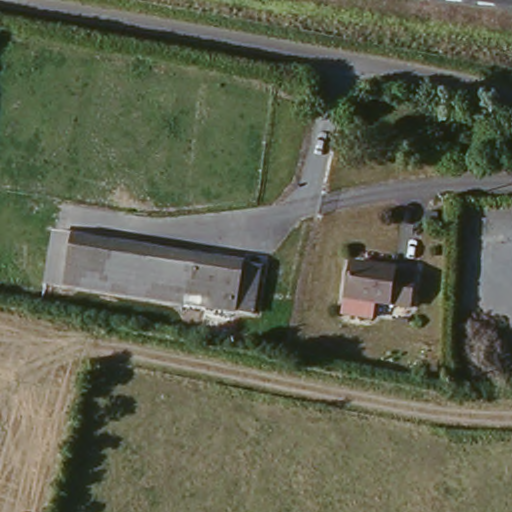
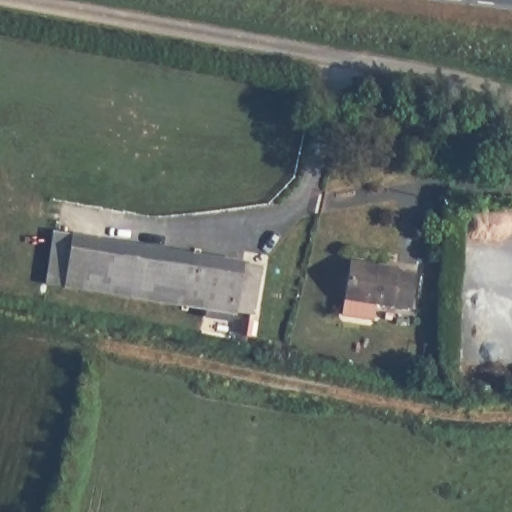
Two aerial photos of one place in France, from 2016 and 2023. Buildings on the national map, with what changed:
unchanged [(195,310),(57,288),(64,238),(203,258),(195,310)]
unchanged [(346,256),(392,262),(392,264),(410,267),(406,299),(371,295),(369,311),(339,307),(346,256)]
unchanged [(246,317),(195,310),(203,258),(253,267),(253,270),(271,272),(268,297),(264,319),(246,317)]

